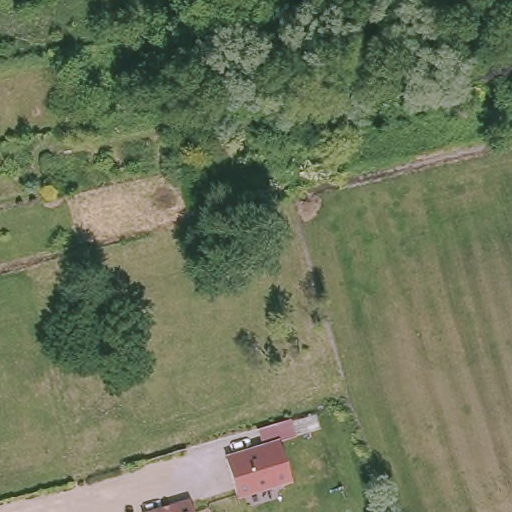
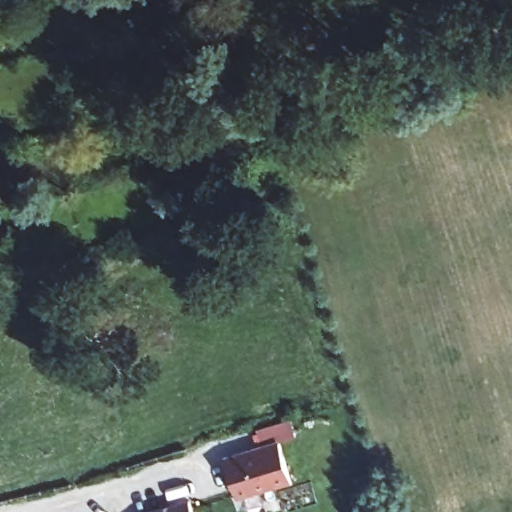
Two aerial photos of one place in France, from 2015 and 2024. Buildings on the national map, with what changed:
unchanged [(54,64),(52,52),(72,49),(75,61),(65,62),(54,64)]
unchanged [(257,428),(291,418),(292,421),(315,415),(320,428),(295,435),(279,440),(292,481),(238,497),(224,455),(262,443),(257,428)]
unchanged [(189,496),(194,512),(141,512),(189,496)]

